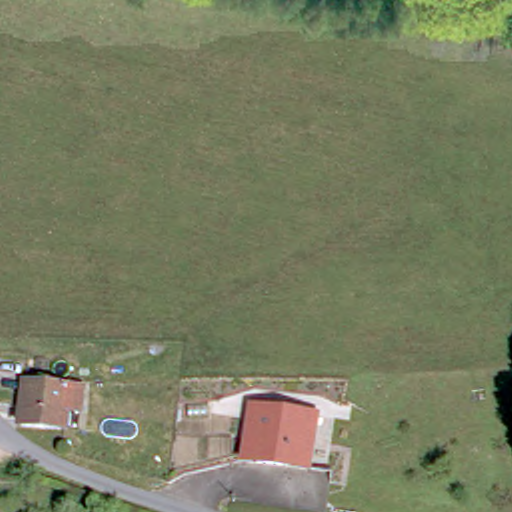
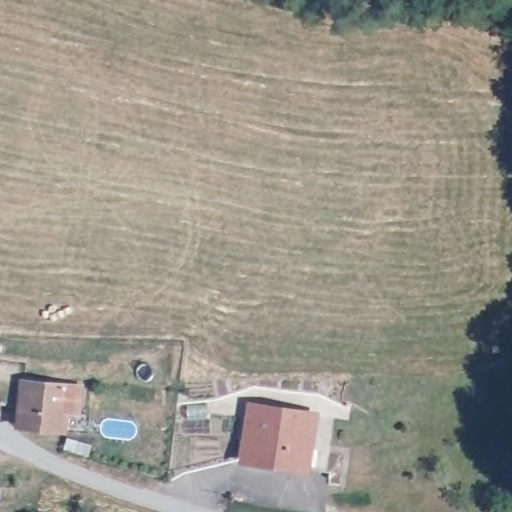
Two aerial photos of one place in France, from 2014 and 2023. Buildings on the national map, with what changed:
unchanged [(55,407),(67,410),(64,427),(53,425),(52,430),(15,419),(25,369),(60,375),(55,407)]
unchanged [(312,410),(303,465),(242,457),(250,402),(312,410)]

